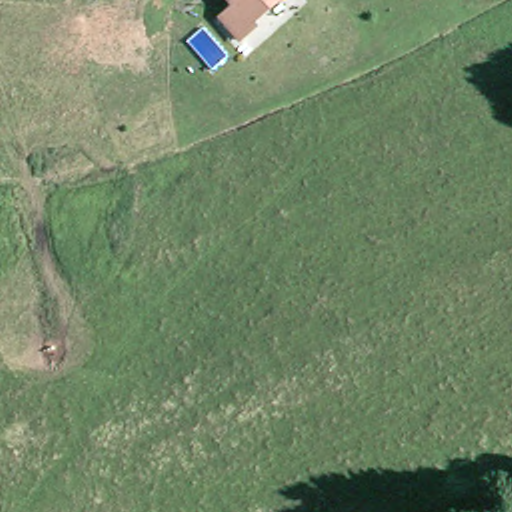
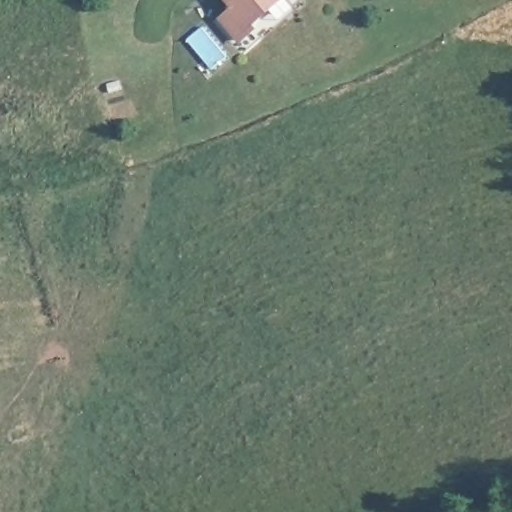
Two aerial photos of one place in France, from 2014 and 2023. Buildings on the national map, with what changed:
unchanged [(226,4),(223,0),(280,0),(240,42),(215,15),(226,4)]

